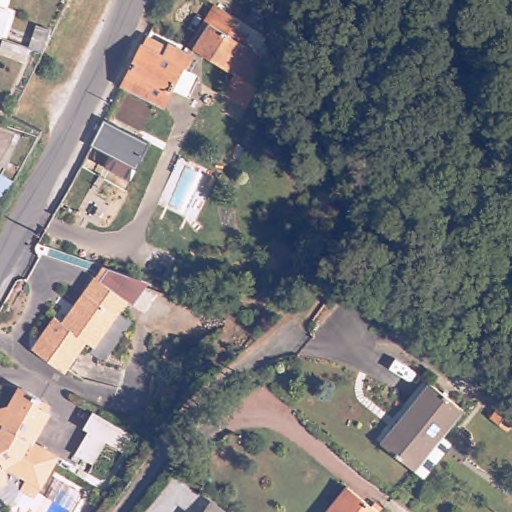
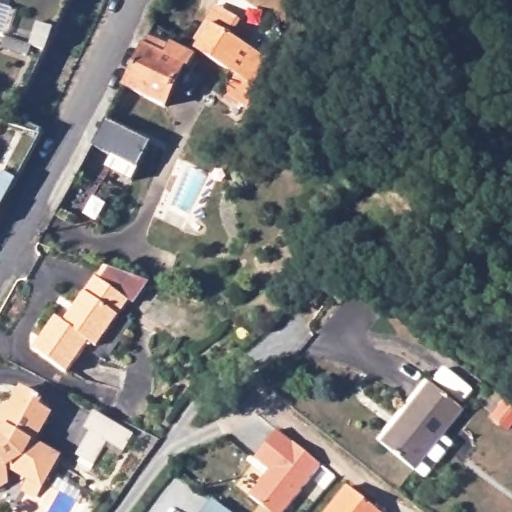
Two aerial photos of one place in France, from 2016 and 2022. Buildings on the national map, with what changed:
unchanged [(0,8),(0,0),(3,0),(0,8)]
unchanged [(252,81),(234,70),(233,71),(201,51),(202,48),(195,44),(219,4),(226,8),(247,21),(242,28),(251,34),(246,42),(274,59),(258,85),(266,89),(255,105),(242,97),(252,81)]
unchanged [(38,35),(50,38),(43,52),(33,48),(38,35)]
unchanged [(202,56),(196,68),(192,66),(172,107),(130,86),(150,46),(153,37),(174,46),(174,44),(202,56)]
unchanged [(155,141),(134,178),(108,164),(114,152),(94,141),(109,116),(155,141)]
unchanged [(138,278),(152,283),(136,308),(131,305),(93,280),(103,265),(138,278)]
unchanged [(100,352),(93,348),(73,379),(29,351),(51,318),(58,322),(88,276),(93,280),(131,305),(100,352)]
unchanged [(466,408),(447,433),(457,441),(430,477),(386,443),(433,382),(466,408)]
unchanged [(10,463),(6,481),(0,483),(0,437),(6,435),(10,428),(4,424),(6,422),(3,413),(7,407),(15,406),(25,388),(45,399),(43,405),(53,411),(36,442),(65,458),(49,485),(44,495),(31,487),(36,478),(10,463)]
unchanged [(93,412),(129,432),(119,449),(106,442),(94,464),(71,451),(93,412)]
new [(253,461),(276,432),(319,467),(283,512),(266,512),(248,498),(268,472),(253,461)]
unchanged [(381,512),(323,512),(345,484),(381,512)]

